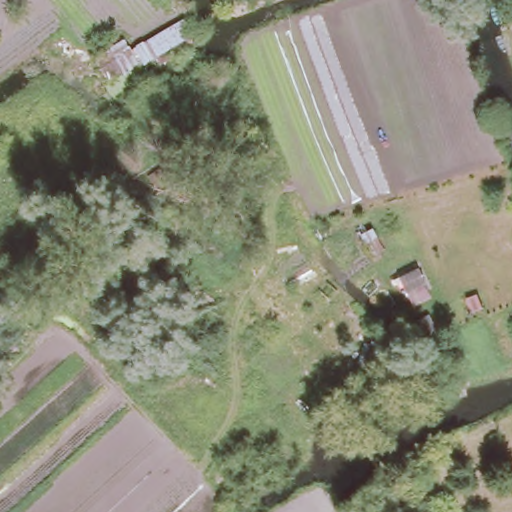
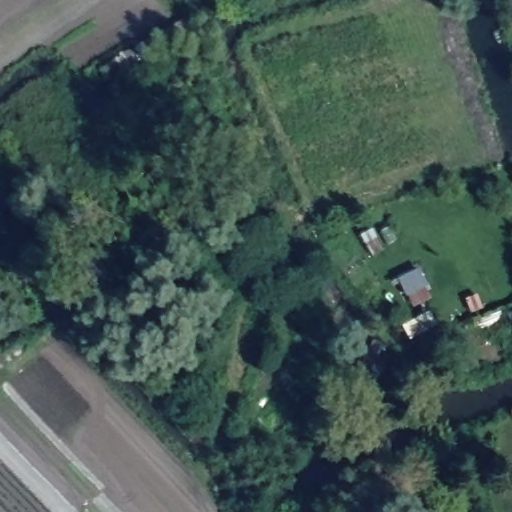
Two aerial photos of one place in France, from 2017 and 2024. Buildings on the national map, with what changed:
unchanged [(165,64),(148,37),(176,19),(192,45),(165,64)]
unchanged [(414,268),(422,285),(407,292),(399,276),(414,268)]
unchanged [(381,350),(380,368),(362,367),(364,348),(381,350)]

